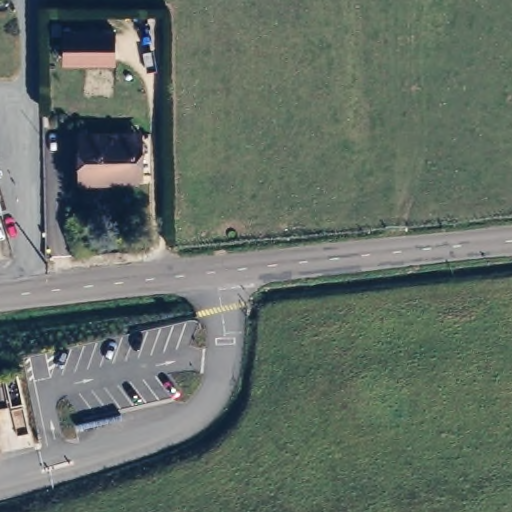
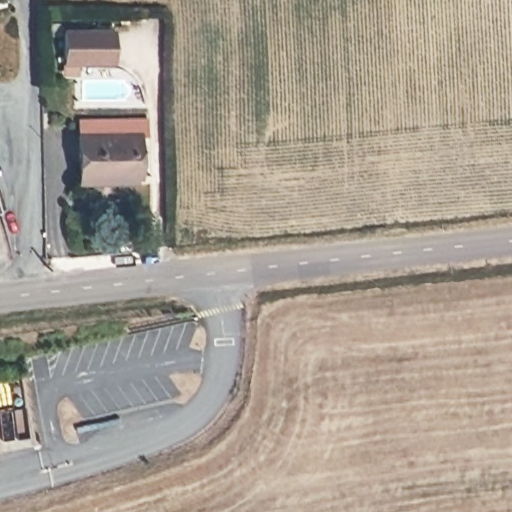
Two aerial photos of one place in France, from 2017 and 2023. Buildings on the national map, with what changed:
unchanged [(116,29),(116,58),(66,58),(66,29),(116,29)]
unchanged [(128,138),(128,179),(73,180),(73,139),(128,138)]

